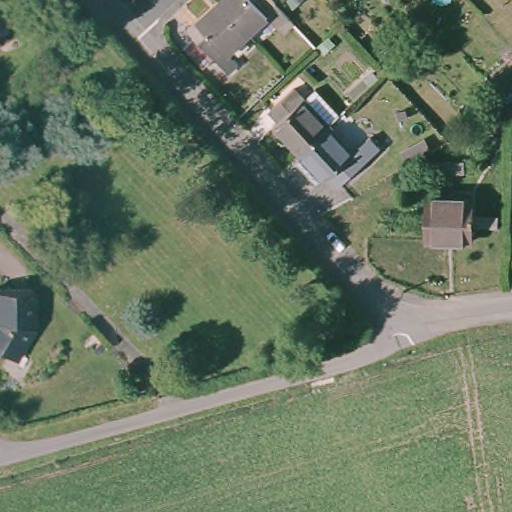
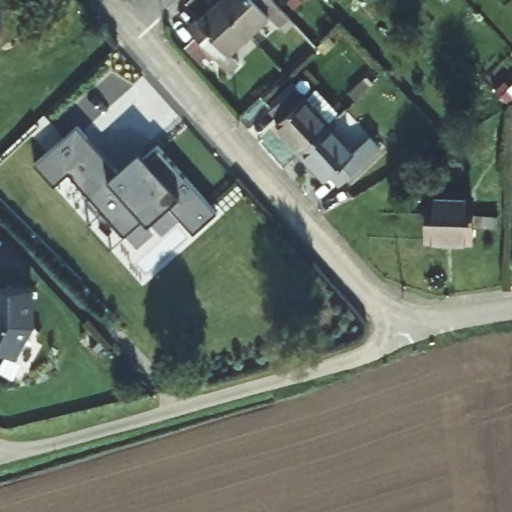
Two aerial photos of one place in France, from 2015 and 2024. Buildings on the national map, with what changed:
unchanged [(216,0),(256,0),(282,29),(271,40),(257,24),(237,43),(206,10),(216,0)]
unchanged [(8,15),(8,18),(8,21),(8,24),(7,27),(5,29),(4,31),(1,34),(0,35),(0,3),(5,9),(8,15)]
unchanged [(237,43),(219,59),(230,71),(217,82),(201,67),(191,76),(175,60),(186,50),(176,38),(206,10),(237,43)]
unchanged [(260,126),(268,118),(256,105),(281,81),(296,97),(307,86),(331,110),(320,121),(285,154),(260,126)]
unchanged [(342,145),(356,131),(369,145),(325,184),(312,171),(306,177),(285,154),(320,121),(342,145)]
new [(140,151),(145,157),(157,146),(216,212),(193,232),(168,205),(148,224),(143,218),(125,235),(68,172),(54,185),(35,165),(77,127),(117,172),(140,151)]
unchanged [(470,195),(468,241),(425,240),(425,194),(470,195)]
unchanged [(38,321),(20,353),(0,343),(0,285),(36,284),(38,321)]

